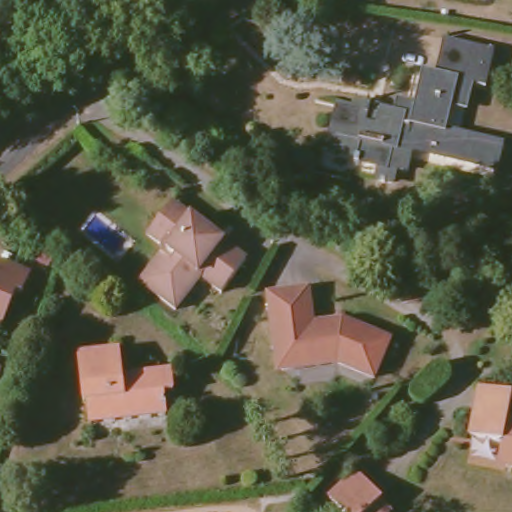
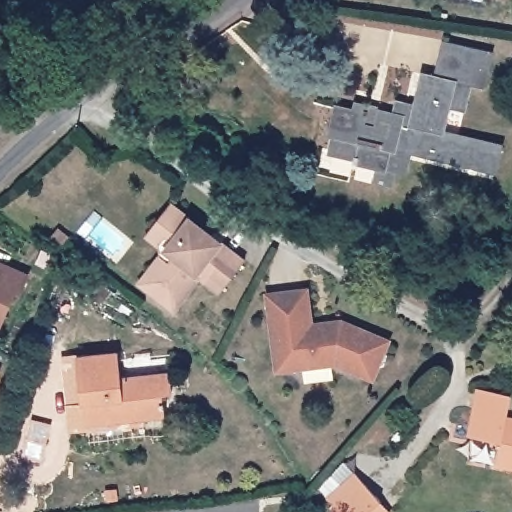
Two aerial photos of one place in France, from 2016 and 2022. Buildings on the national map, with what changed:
unchanged [(378,105),(377,110),(398,115),(403,92),(422,96),(427,74),(435,76),(443,40),(494,52),(485,87),(471,84),(465,108),(452,105),(448,122),(503,135),(500,144),(496,168),(415,150),(412,147),(407,147),(402,170),(396,169),(393,181),(387,180),(386,182),(382,181),(382,179),(376,178),(379,166),(361,163),(362,165),(358,164),(359,158),(337,153),(341,136),(335,135),(340,108),(356,112),(358,104),(370,106),(370,103),(378,105)]
unchanged [(148,272),(164,251),(162,243),(148,232),(155,224),(173,200),(247,257),(223,289),(202,274),(183,298),(177,306),(150,286),(142,280),(148,272)]
unchanged [(56,231),(68,240),(62,249),(50,239),(56,231)]
unchanged [(22,290),(17,288),(5,326),(0,325),(0,261),(29,271),(22,290)]
unchanged [(389,341),(373,378),(337,364),(284,371),(278,366),(269,295),(309,290),(313,326),(337,321),(340,321),(389,341)]
unchanged [(125,419),(90,423),(87,402),(85,402),(80,356),(87,355),(112,351),(119,350),(122,376),(160,372),(171,371),(173,393),(163,394),(165,415),(125,419)]
unchanged [(501,443),(470,438),(478,390),(510,395),(508,410),(512,411),(512,469),(507,468),(497,467),(501,443)]
unchanged [(348,512),(335,497),(362,472),(387,500),(397,510),(396,512),(348,512)]

